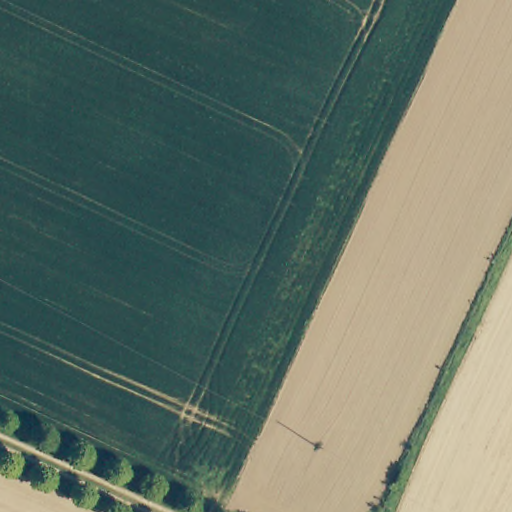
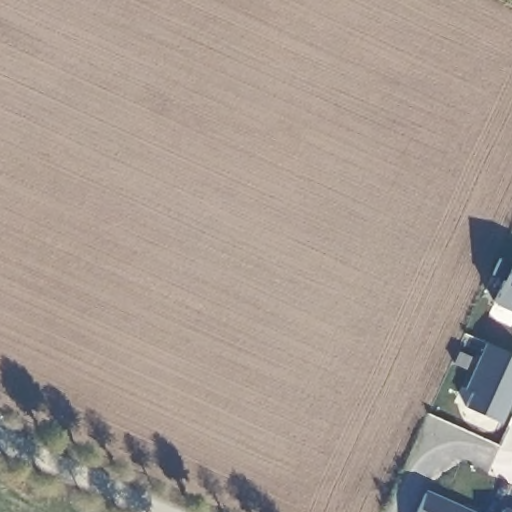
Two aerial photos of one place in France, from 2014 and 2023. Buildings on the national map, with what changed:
new [(512,312),(493,303),(502,282),(492,277),(500,260),(512,265),(512,312)]
new [(463,406),(470,389),(464,387),(484,342),(512,353),(512,399),(502,424),(463,406)]
new [(424,492),(467,512),(414,512),(424,492)]
new [(504,508),(512,512),(502,512),(504,508)]

